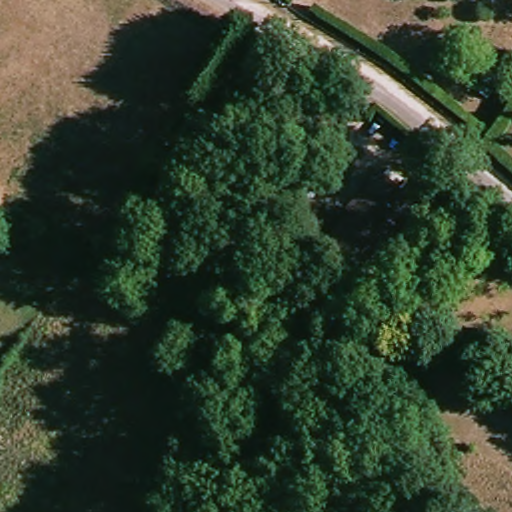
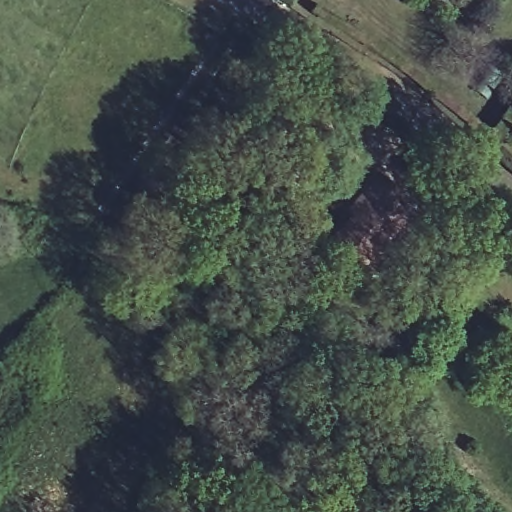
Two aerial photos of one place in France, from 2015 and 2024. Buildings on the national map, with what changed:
unchanged [(396,208),(406,215),(364,273),(329,247),(370,190),(366,188),(376,175),(404,197),(396,208)]

